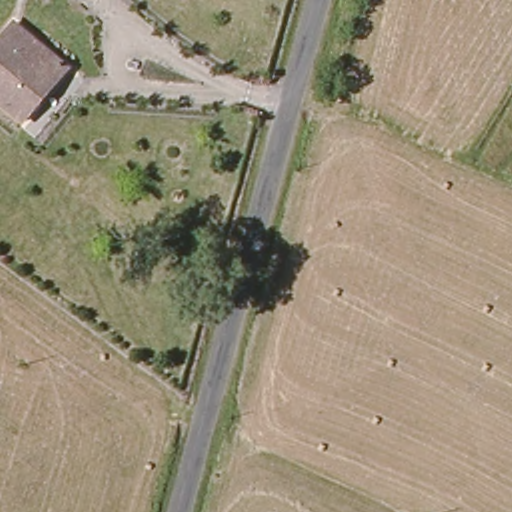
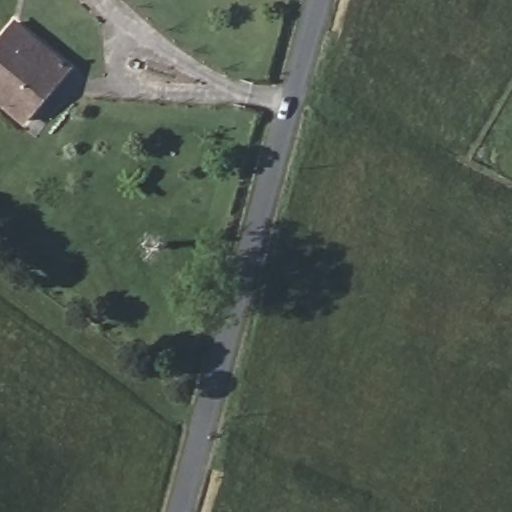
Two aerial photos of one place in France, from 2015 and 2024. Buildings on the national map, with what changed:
unchanged [(28,125),(0,99),(0,47),(20,23),(74,72),(28,125)]

